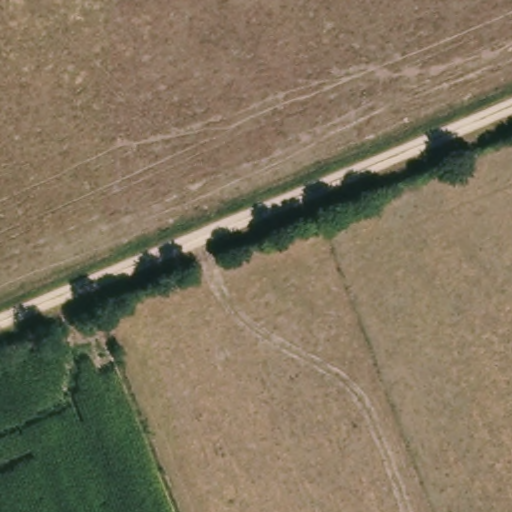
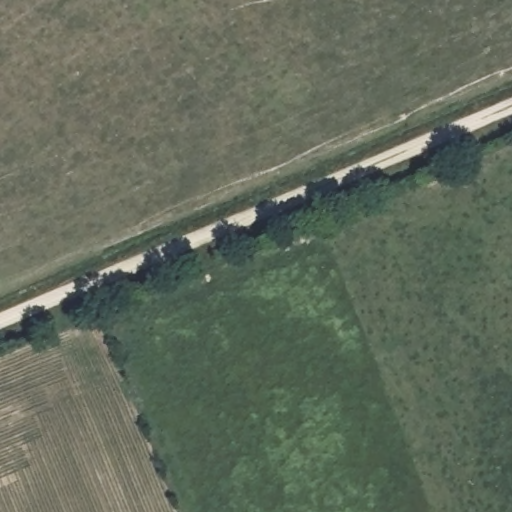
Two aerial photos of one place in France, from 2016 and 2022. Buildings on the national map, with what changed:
[]

